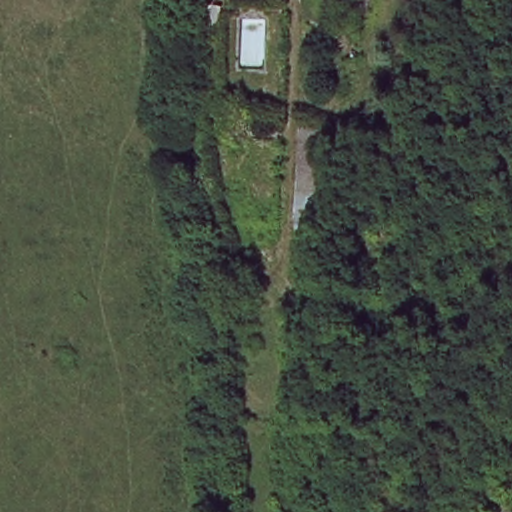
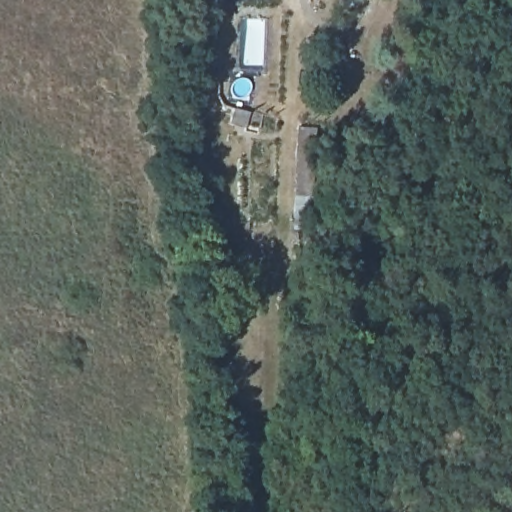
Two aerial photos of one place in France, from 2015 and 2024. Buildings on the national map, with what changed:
unchanged [(320,125),(313,227),(294,227),(300,125),(320,125)]

